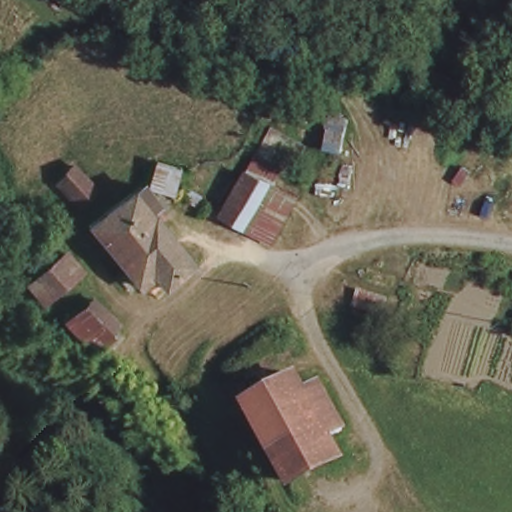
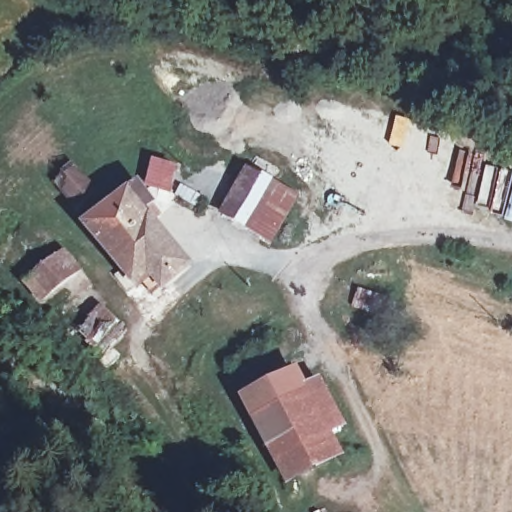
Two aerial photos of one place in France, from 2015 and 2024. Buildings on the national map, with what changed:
unchanged [(277,248),(254,238),(248,235),(223,224),(244,172),(254,157),(283,168),(277,182),(276,185),(298,194),(277,248)]
unchanged [(65,174),(81,163),(101,192),(84,203),(65,174)]
unchanged [(155,167),(175,175),(164,203),(144,195),(155,167)]
unchanged [(130,291),(126,293),(82,225),(129,197),(138,191),(153,212),(144,218),(176,264),(174,278),(150,291),(136,300),(130,291)]
unchanged [(34,280),(69,257),(80,276),(46,298),(34,280)]
unchanged [(76,321),(101,305),(119,332),(95,349),(76,321)]
unchanged [(346,446),(328,452),(335,473),(286,492),(255,406),(306,389),(311,405),(329,399),(346,446)]

